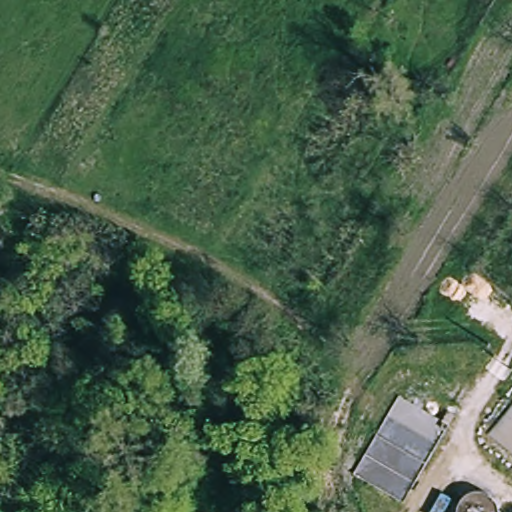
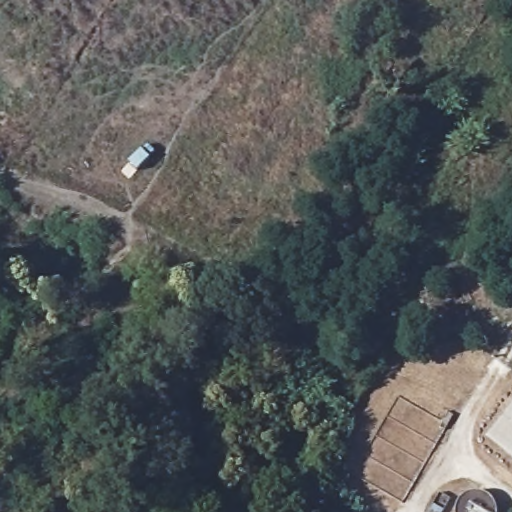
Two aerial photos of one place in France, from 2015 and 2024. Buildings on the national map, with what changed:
[]

